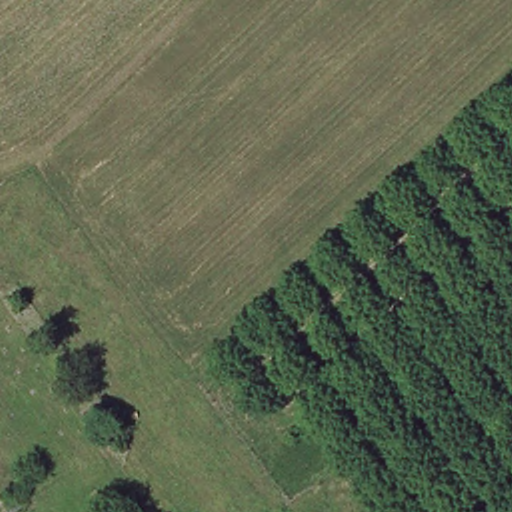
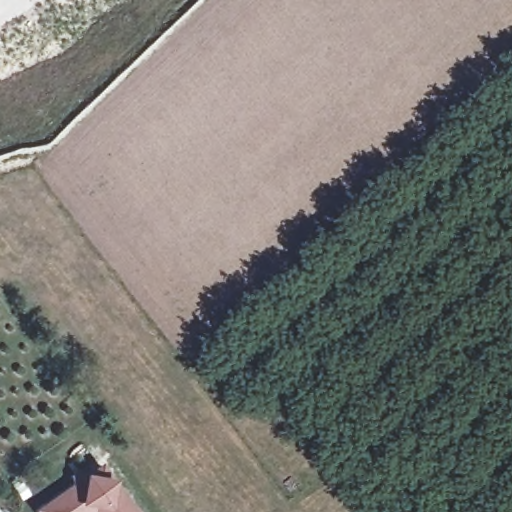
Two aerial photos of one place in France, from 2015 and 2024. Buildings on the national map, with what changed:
new [(92,512),(43,512),(42,511),(80,484),(75,478),(82,473),(86,479),(103,467),(135,512),(98,512),(96,509),(92,512)]

